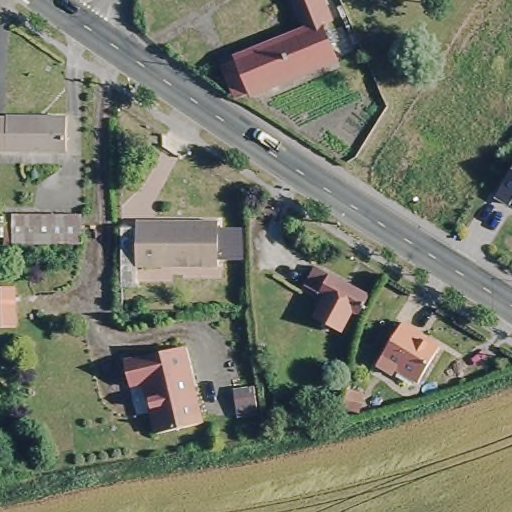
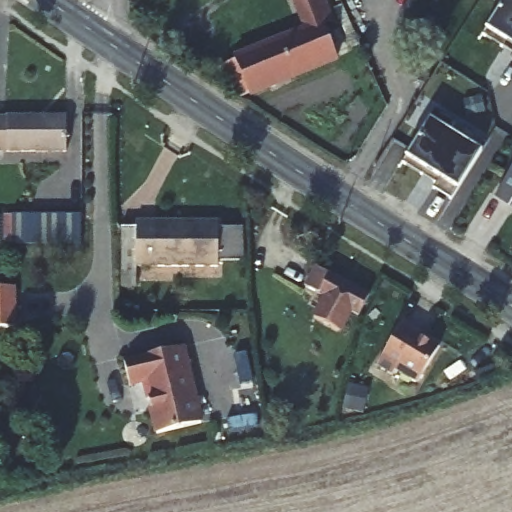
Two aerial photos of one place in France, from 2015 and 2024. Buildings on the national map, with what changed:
unchanged [(214,65),(301,31),(287,0),(327,0),(334,16),(319,25),(335,61),(230,102),(226,94),(214,65)]
new [(480,35),(485,29),(504,0),(512,0),(512,56),(480,35)]
new [(434,189),(436,185),(401,163),(405,157),(430,117),(435,109),(457,122),(451,132),(482,151),(457,189),(450,199),(434,189)]
unchanged [(0,117),(64,114),(64,150),(0,153),(0,117)]
unchanged [(510,206),(496,197),(512,172),(512,203),(510,206)]
unchanged [(9,220),(77,216),(77,246),(10,249),(9,220)]
unchanged [(136,225),(150,225),(150,222),(234,224),(232,269),(150,266),(150,286),(135,286),(136,225)]
unchanged [(355,312),(347,307),(336,328),(312,315),(325,295),(304,283),(315,263),(367,292),(355,312)]
unchanged [(0,329),(0,289),(12,289),(12,328),(0,329)]
unchanged [(421,377),(399,365),(394,372),(378,362),(402,318),(418,327),(417,330),(440,343),(421,377)]
unchanged [(155,432),(143,381),(129,385),(122,360),(182,347),(199,422),(155,432)]
unchanged [(238,408),(235,388),(251,387),(254,406),(238,408)]

